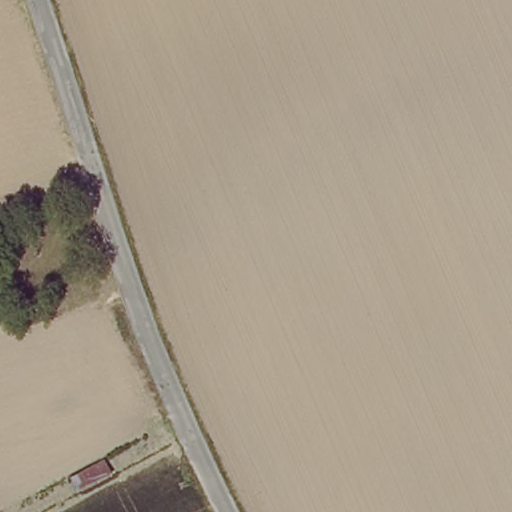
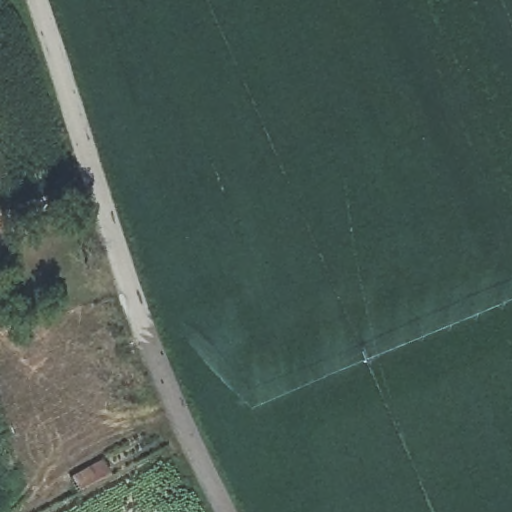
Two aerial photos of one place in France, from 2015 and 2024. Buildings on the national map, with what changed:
unchanged [(66,477),(99,458),(110,475),(73,492),(66,477)]

